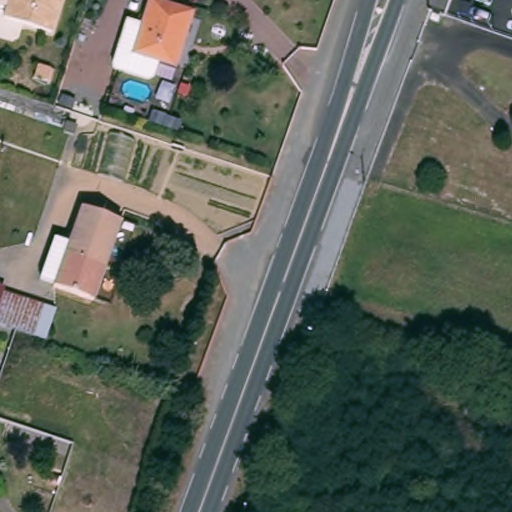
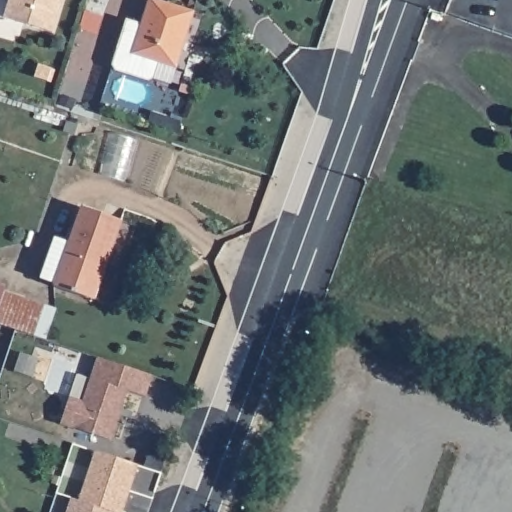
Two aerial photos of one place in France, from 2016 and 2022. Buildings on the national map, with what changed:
unchanged [(57,31),(10,15),(14,0),(67,0),(57,31)]
unchanged [(192,11),(187,26),(202,31),(205,36),(195,68),(190,71),(175,66),(118,49),(127,19),(142,23),(150,0),(155,0),(192,11)]
unchanged [(60,237),(75,242),(87,206),(127,221),(100,299),(60,285),(61,283),(45,277),(60,237)]
unchanged [(60,306),(49,338),(0,322),(0,284),(60,306)]
unchanged [(320,328),(331,332),(326,345),(315,342),(320,328)]
new [(66,395),(80,399),(94,355),(149,373),(141,394),(124,388),(107,438),(57,421),(66,395)]
new [(136,463),(120,512),(117,512),(115,511),(77,499),(94,449),(136,463)]
new [(77,499),(115,511),(115,512),(65,512),(70,496),(77,499)]

